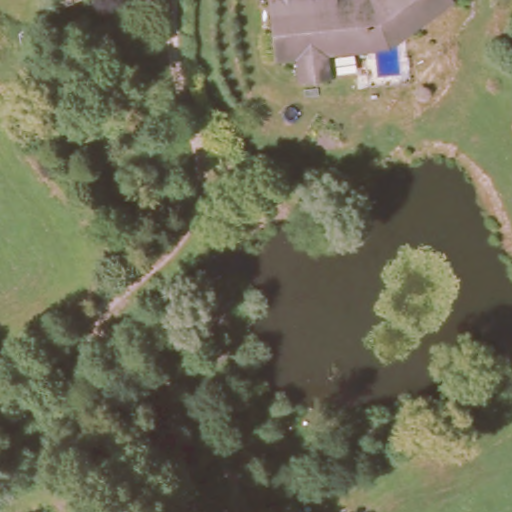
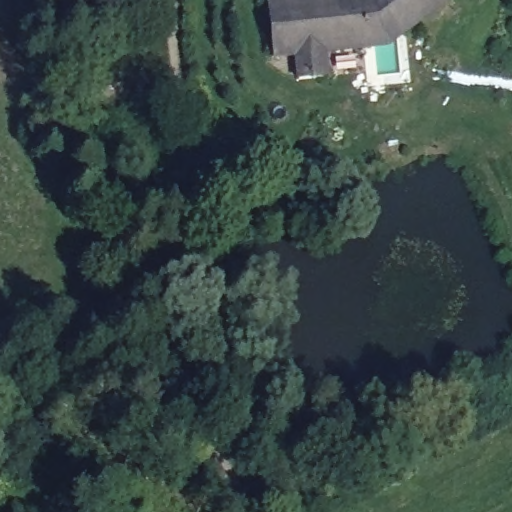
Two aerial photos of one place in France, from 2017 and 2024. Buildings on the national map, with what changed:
unchanged [(333,55),(333,79),(297,82),(296,58),(275,57),(270,0),(454,0),(393,51),(333,55)]

